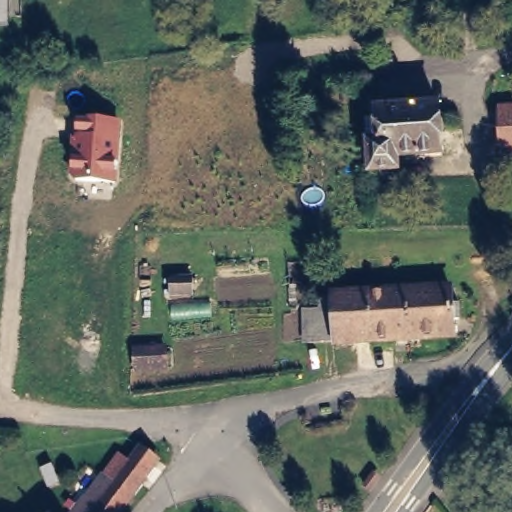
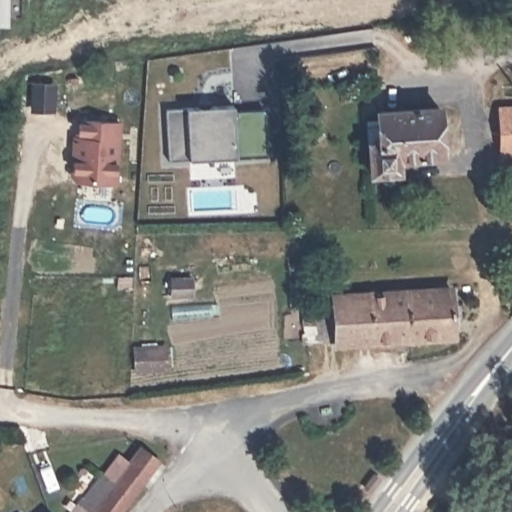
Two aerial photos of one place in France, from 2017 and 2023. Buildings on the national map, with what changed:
unchanged [(445,103),(448,151),(402,155),(403,166),(377,168),(375,140),(373,117),(383,116),(383,106),(445,103)]
new [(166,109),(187,107),(233,104),(233,111),(265,110),(267,155),(236,156),(190,159),(170,160),(166,109)]
unchanged [(71,180),(74,119),(121,121),(118,185),(71,180)]
unchanged [(506,157),(507,174),(495,175),(495,157),(506,157)]
unchanged [(448,288),(450,305),(458,305),(458,319),(451,319),(451,336),(333,343),(331,296),(448,288)]
unchanged [(135,350),(163,348),(165,368),(135,370),(135,357),(135,350)]
unchanged [(143,450),(159,462),(122,512),(77,512),(105,475),(117,483),(143,450)]

